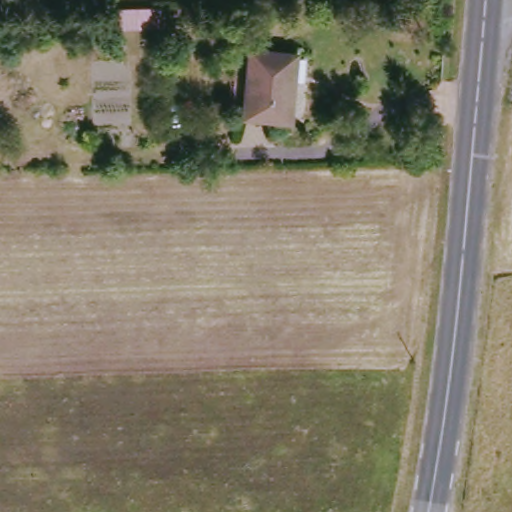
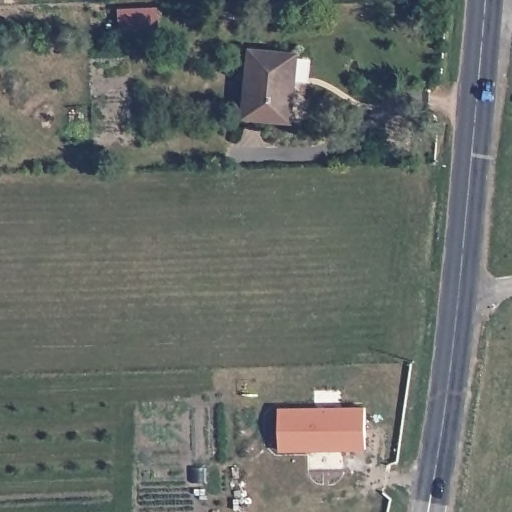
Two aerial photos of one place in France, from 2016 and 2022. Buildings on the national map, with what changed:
unchanged [(116,25),(115,2),(157,5),(157,25),(116,25)]
unchanged [(295,55),(292,120),(245,119),(249,52),(295,55)]
new [(280,450),(278,407),(364,406),(366,449),(280,450)]

